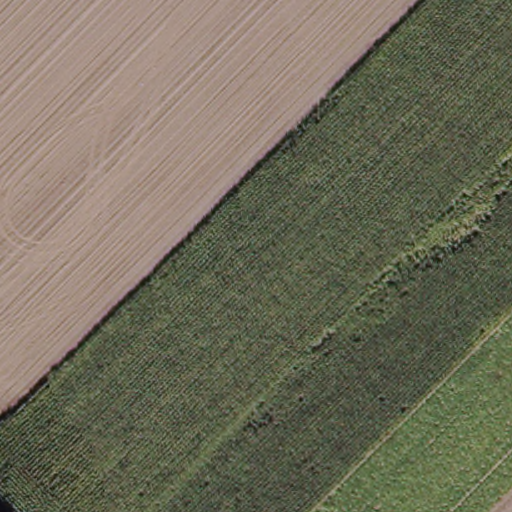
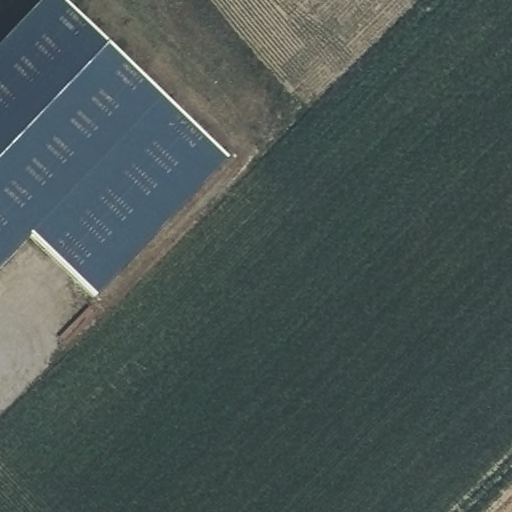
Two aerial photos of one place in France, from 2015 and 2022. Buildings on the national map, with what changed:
new [(63,0),(229,156),(93,297),(30,237),(0,269),(0,46),(44,0),(63,0)]

